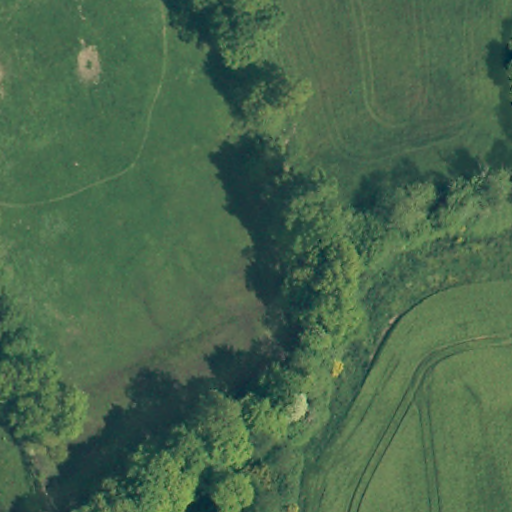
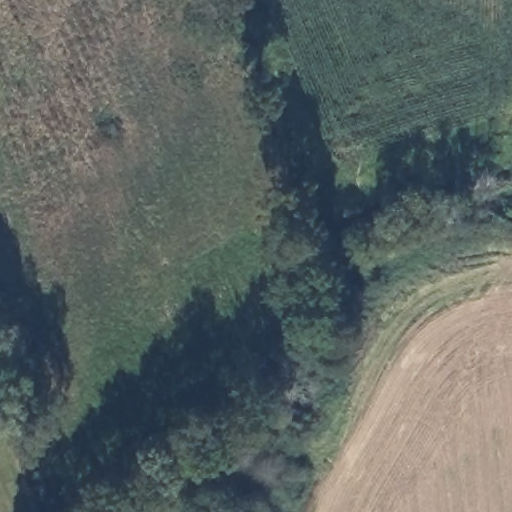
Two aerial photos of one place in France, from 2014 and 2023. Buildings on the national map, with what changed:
[]

